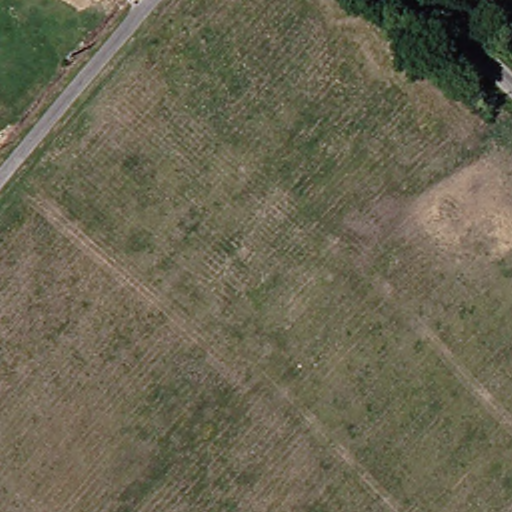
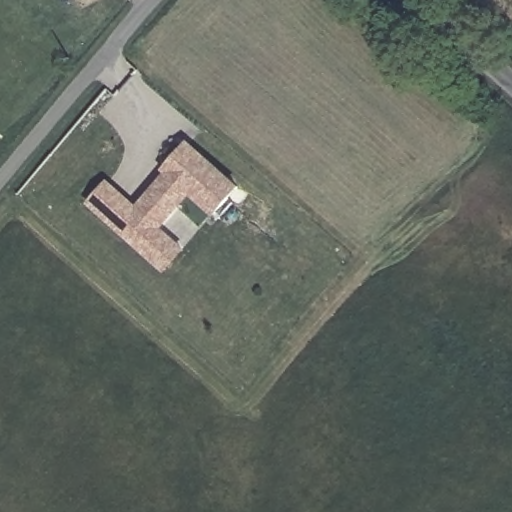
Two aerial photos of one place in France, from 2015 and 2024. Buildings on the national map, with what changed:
new [(161,170),(187,140),(242,186),(216,216),(191,196),(161,228),(187,250),(165,272),(86,204),(107,179),(136,205),(165,174),(161,170)]

